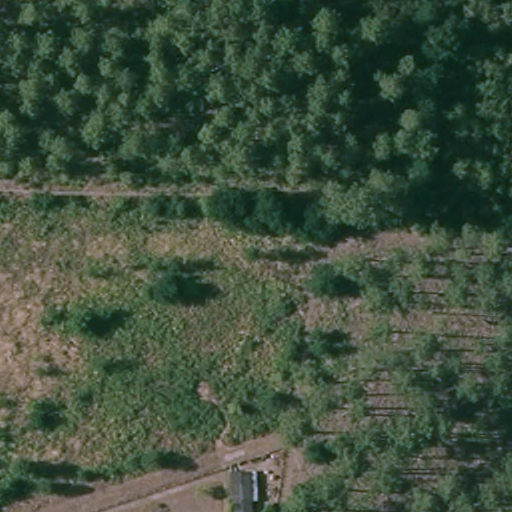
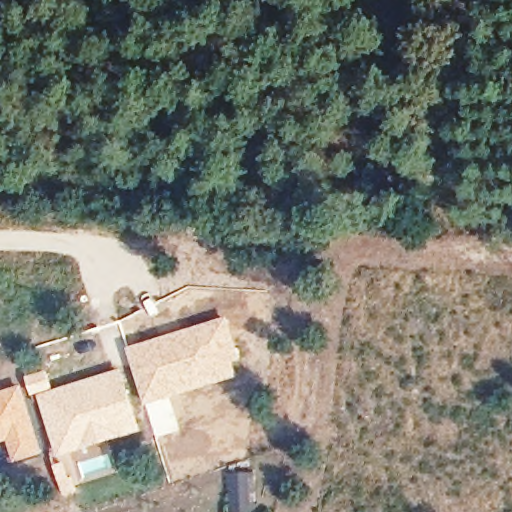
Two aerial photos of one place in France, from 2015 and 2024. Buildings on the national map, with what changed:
new [(227,317),(240,359),(232,362),(236,378),(145,405),(127,347),(227,317)]
new [(31,396),(25,376),(47,370),(52,390),(121,368),(140,431),(57,456),(38,395),(31,396)]
new [(43,453),(14,463),(7,441),(0,443),(0,392),(21,385),(43,453)]

